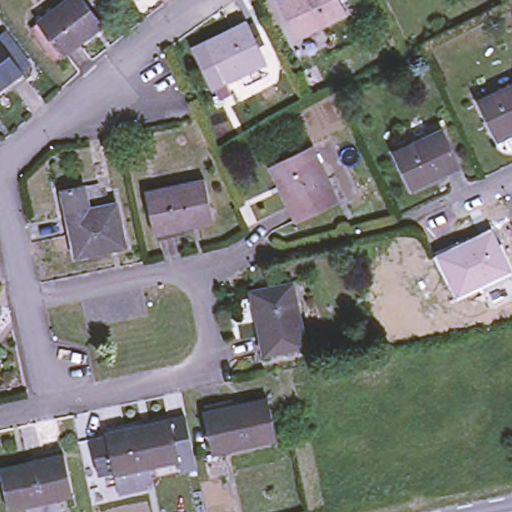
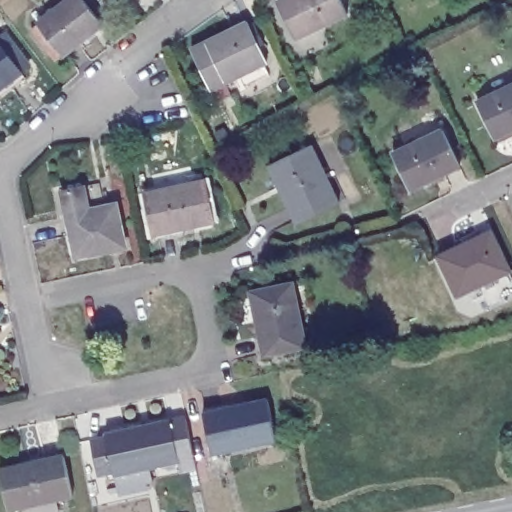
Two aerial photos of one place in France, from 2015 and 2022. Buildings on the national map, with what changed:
unchanged [(39,30),(46,24),(45,23),(73,0),(92,0),(111,26),(72,57),(71,55),(63,62),(39,30)]
unchanged [(348,16),(297,38),(282,0),(341,0),(348,16)]
unchanged [(228,79),(214,85),(196,47),(210,40),(249,20),(258,38),(264,35),(274,58),(277,63),(268,67),(272,74),(242,87),(237,75),(228,79)]
unchanged [(0,90),(0,37),(3,35),(10,45),(27,66),(18,73),(20,75),(0,90)]
unchanged [(498,141),(481,105),(512,90),(512,134),(498,141)]
unchanged [(443,133),(459,169),(411,192),(395,156),(443,133)]
unchanged [(313,145),(340,202),(299,220),(284,189),(287,188),(275,163),(313,145)]
unchanged [(72,213),(67,190),(88,186),(103,183),(109,206),(122,203),(130,244),(105,248),(106,253),(82,258),(80,253),(72,213)]
unchanged [(205,184),(214,226),(154,237),(146,196),(205,184)]
unchanged [(494,235),(512,274),(462,298),(444,259),(494,235)]
unchanged [(298,283),(310,345),(270,353),(258,292),(298,283)]
unchanged [(268,402),(277,442),(213,456),(204,416),(268,402)]
unchanged [(111,478),(111,475),(95,478),(87,443),(103,439),(103,437),(166,423),(181,420),(192,470),(175,473),(173,464),(146,470),(149,482),(142,483),(143,489),(115,496),(111,478)]
unchanged [(64,459),(73,499),(9,512),(0,475),(0,472),(64,459)]

